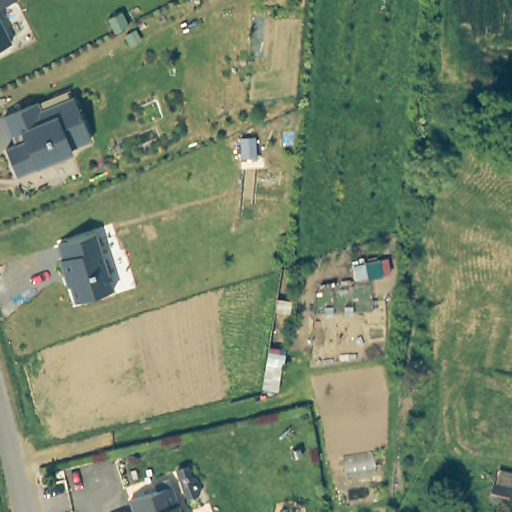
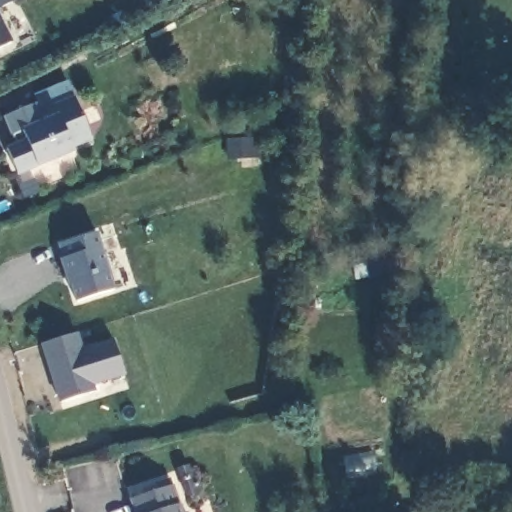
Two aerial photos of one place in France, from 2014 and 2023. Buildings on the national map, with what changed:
unchanged [(17,2),(0,10),(0,0),(16,0),(17,2)]
unchanged [(0,50),(0,23),(11,45),(0,50)]
unchanged [(59,160),(17,177),(6,151),(15,148),(11,138),(3,120),(38,105),(41,113),(73,100),(90,142),(71,150),(73,154),(59,160)]
unchanged [(69,279),(67,279),(62,263),(64,262),(60,248),(98,236),(116,293),(78,305),(69,279)]
new [(78,331),(83,347),(113,338),(125,375),(94,384),(96,391),(60,403),(41,344),(78,331)]
unchanged [(492,481),(512,486),(512,503),(489,498),(492,481)]
unchanged [(170,484),(177,509),(182,508),(183,512),(134,512),(129,496),(170,484)]

